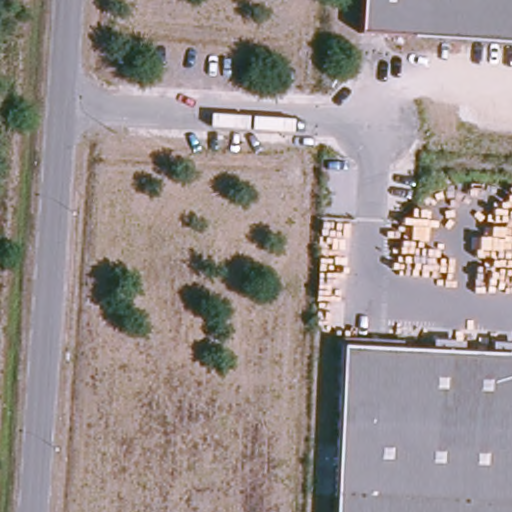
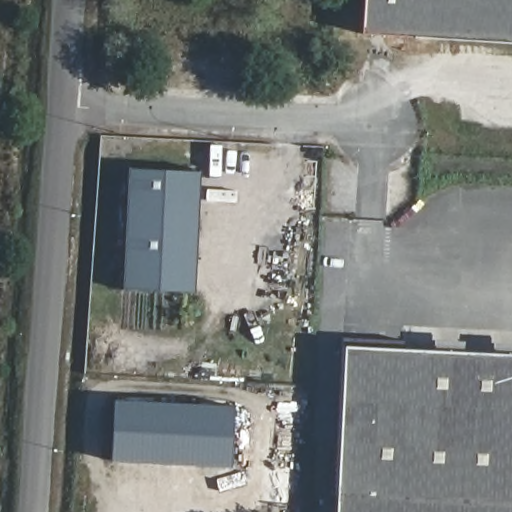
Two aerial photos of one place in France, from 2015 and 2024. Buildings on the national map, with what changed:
unchanged [(364,0),(512,0),(512,42),(362,35),(364,0)]
new [(194,292),(122,290),(127,168),(199,171),(194,292)]
unchanged [(349,338),(410,342),(410,350),(495,356),(512,357),(512,512),(338,512),(349,338)]
new [(106,400),(226,409),(222,468),(102,460),(106,400)]

